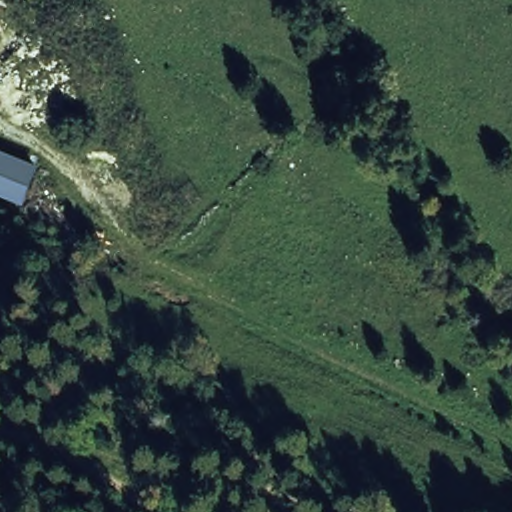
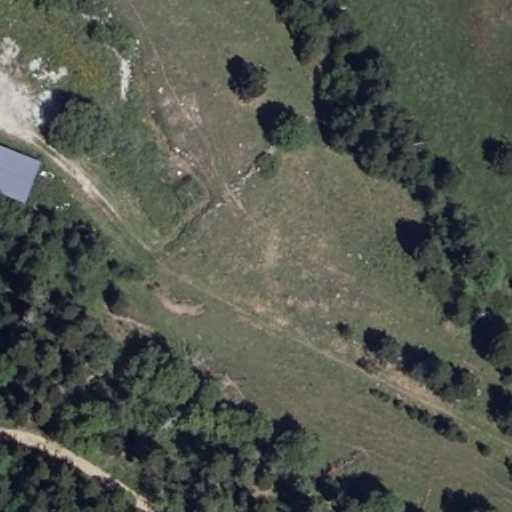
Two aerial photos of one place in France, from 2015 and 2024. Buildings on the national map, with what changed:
unchanged [(30,205),(0,194),(0,148),(45,164),(30,205)]

